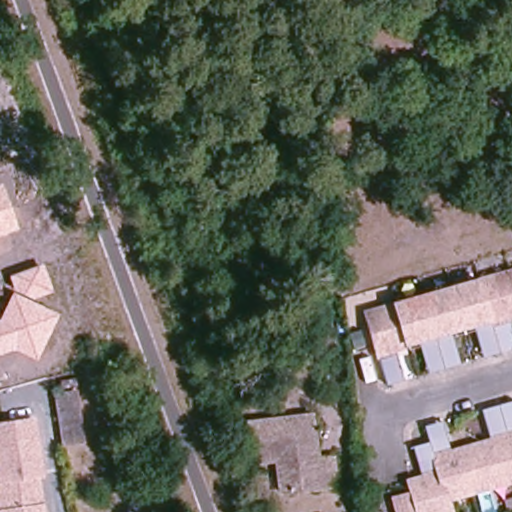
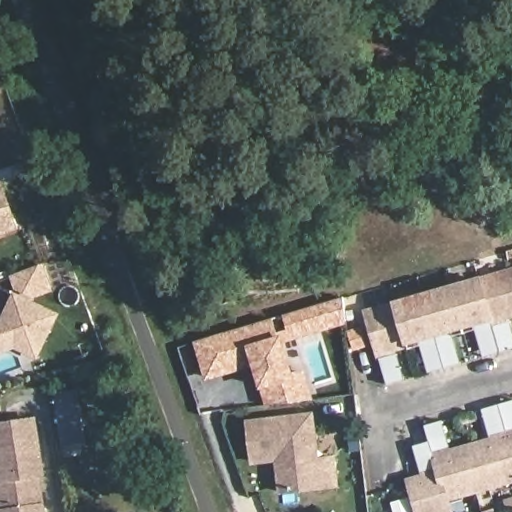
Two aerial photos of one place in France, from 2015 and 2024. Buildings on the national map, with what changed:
unchanged [(19,229),(0,235),(0,183),(1,182),(19,229)]
unchanged [(504,304),(469,314),(448,321),(416,331),(394,338),(374,343),(362,304),(382,298),(512,259),(512,301),(504,304)]
unchanged [(9,276),(42,264),(53,291),(32,300),(60,313),(38,360),(14,350),(0,355),(0,318),(14,293),(9,276)]
new [(194,343),(273,318),(277,331),(286,329),(283,316),(344,298),(347,325),(286,345),(294,374),(305,372),(314,399),(264,405),(260,390),(254,369),(205,380),(194,343)]
new [(330,303),(338,326),(310,334),(304,311),(330,303)]
unchanged [(512,332),(512,335),(479,345),(469,314),(504,304),(512,332)]
unchanged [(457,352),(425,362),(416,331),(448,321),(457,352)]
unchanged [(405,368),(384,375),(374,344),(395,339),(405,368)]
unchanged [(64,445),(56,394),(76,392),(84,442),(64,445)]
unchanged [(481,409),(512,400),(512,433),(504,436),(491,440),(481,409)]
unchanged [(310,413),(317,458),(333,456),(337,483),(282,490),(278,457),(253,460),(248,422),(310,413)]
unchanged [(39,477),(45,512),(0,512),(0,422),(34,416),(45,476),(39,477)]
unchanged [(512,433),(512,486),(449,505),(451,512),(424,512),(414,481),(423,479),(413,448),(422,445),(429,443),(424,426),(442,421),(451,452),(491,440),(504,436),(512,433)]

